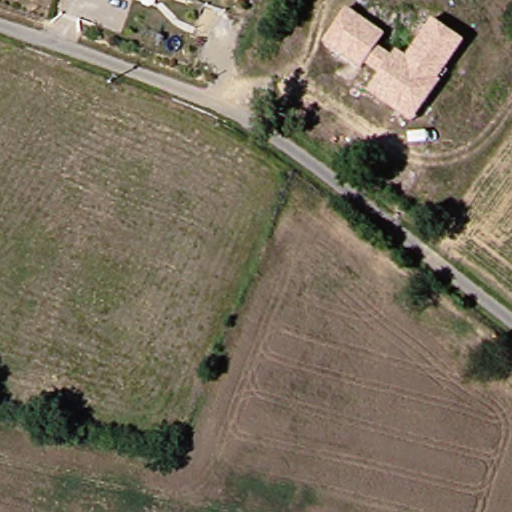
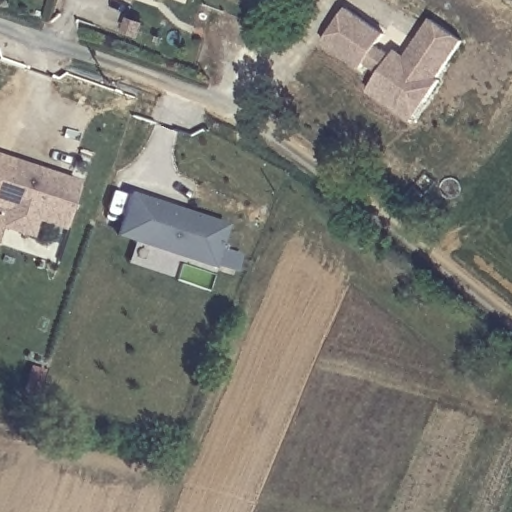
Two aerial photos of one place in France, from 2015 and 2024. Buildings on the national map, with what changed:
unchanged [(385,33),(377,44),(404,64),(433,20),(466,41),(438,79),(442,81),(426,104),(412,92),(402,107),(376,87),(379,83),(325,44),(348,9),(385,33)]
new [(0,200),(0,155),(14,160),(0,200)]
new [(14,160),(80,181),(65,226),(9,207),(0,205),(0,200),(14,160)]
new [(230,224),(215,268),(116,236),(130,192),(230,224)]
new [(31,234),(3,224),(9,207),(36,217),(31,234)]

